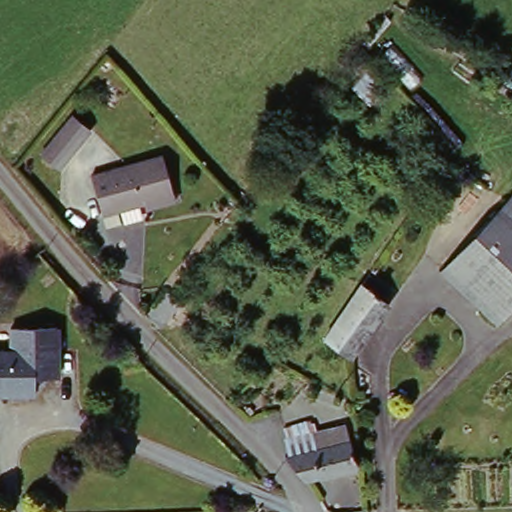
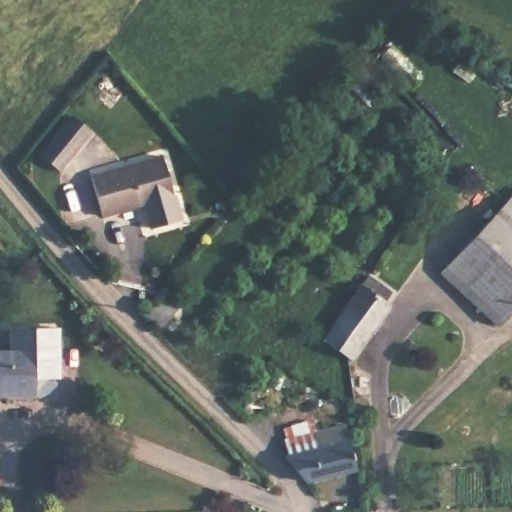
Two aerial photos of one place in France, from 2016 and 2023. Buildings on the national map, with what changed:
unchanged [(92,131),(60,170),(39,152),(70,114),(92,131)]
unchanged [(165,155),(176,195),(106,213),(94,175),(165,155)]
unchanged [(457,259),(512,200),(512,308),(497,324),(444,273),(457,259)]
unchanged [(383,303),(389,310),(355,355),(353,357),(323,339),(371,275),(392,290),(383,303)]
unchanged [(169,291),(182,302),(162,326),(150,313),(169,291)]
unchanged [(28,383),(31,391),(31,398),(0,398),(0,357),(10,357),(9,331),(55,331),(54,382),(44,381),(40,375),(28,383)]
unchanged [(287,439),(347,427),(357,468),(305,481),(289,461),(287,439)]

